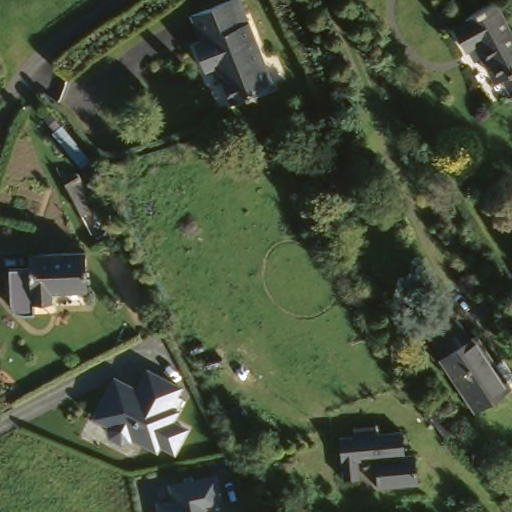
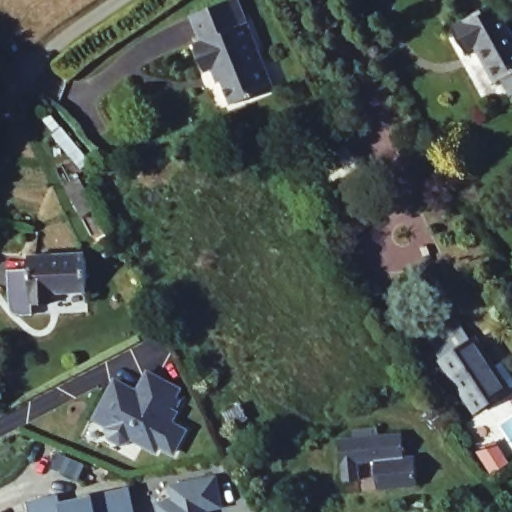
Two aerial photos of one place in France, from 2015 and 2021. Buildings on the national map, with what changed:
unchanged [(247,2),(275,87),(230,101),(218,65),(206,67),(197,42),(204,39),(197,18),(247,2)]
unchanged [(512,14),(512,73),(512,72),(508,74),(488,41),(477,46),(464,22),(504,2),(512,14)]
new [(322,134),(341,156),(319,176),(300,152),(322,134)]
unchanged [(90,252),(91,290),(62,291),(62,301),(39,301),(38,309),(19,310),(18,266),(35,267),(35,254),(90,252)]
unchanged [(459,314),(470,331),(477,327),(496,356),(492,360),(508,384),(479,402),(429,330),(459,314)]
unchanged [(145,371),(179,387),(171,419),(181,427),(172,450),(129,437),(124,443),(106,435),(107,427),(93,422),(112,382),(134,392),(145,371)]
unchanged [(364,430),(364,421),(384,422),(384,432),(414,432),(414,460),(425,460),(426,490),(387,490),(386,461),(368,460),(368,475),(349,476),(349,430),(364,430)]
unchanged [(216,473),(222,504),(209,508),(210,512),(158,512),(157,500),(169,497),(167,483),(216,473)]
new [(58,493),(59,500),(131,485),(137,512),(29,512),(27,501),(58,493)]

